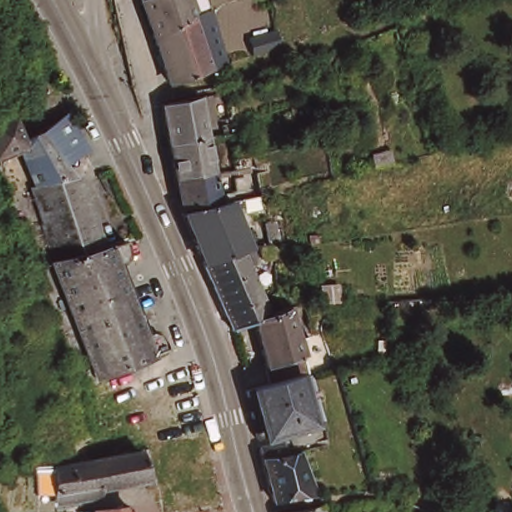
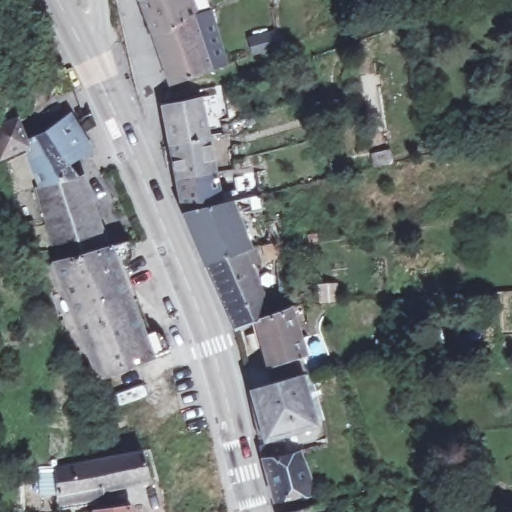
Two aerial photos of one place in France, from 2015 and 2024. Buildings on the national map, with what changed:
unchanged [(150,30),(141,7),(139,0),(182,0),(186,18),(150,30)]
unchanged [(211,66),(201,70),(169,80),(150,30),(186,18),(193,42),(203,38),(211,66)]
unchanged [(283,41),(249,53),(245,36),(279,25),(283,41)]
unchanged [(172,146),(166,105),(201,95),(209,137),(172,146)]
unchanged [(228,126),(219,128),(218,119),(226,117),(228,126)]
unchanged [(75,119),(95,155),(70,170),(78,182),(43,190),(29,151),(4,160),(0,133),(20,126),(29,149),(68,124),(75,119)]
unchanged [(216,172),(178,181),(172,146),(209,137),(216,172)]
unchanged [(223,205),(186,212),(180,195),(178,181),(216,172),(223,205)]
unchanged [(78,182),(98,214),(111,253),(60,263),(43,190),(78,182)]
unchanged [(254,249),(207,265),(186,212),(223,205),(236,202),(249,247),(257,249),(254,249)]
unchanged [(111,253),(114,252),(131,248),(133,264),(130,270),(120,276),(146,342),(159,342),(163,343),(167,347),(171,358),(94,383),(87,367),(83,355),(78,357),(76,353),(56,302),(54,295),(59,292),(49,262),(60,263),(111,253)]
unchanged [(262,265),(253,268),(269,316),(253,323),(233,331),(231,321),(220,297),(207,265),(254,249),(257,249),(262,265)]
unchanged [(316,306),(316,285),(344,283),(342,304),(316,306)]
unchanged [(291,307),(306,355),(303,356),(267,369),(253,323),(269,316),(291,307)]
unchanged [(303,379),(309,377),(313,376),(326,423),(316,426),(258,441),(246,395),(273,388),(303,379)]
unchanged [(299,452),(316,497),(274,502),(260,451),(284,445),(288,453),(299,452)]
unchanged [(39,466),(58,466),(68,465),(76,464),(144,452),(151,480),(101,489),(103,503),(61,507),(60,495),(42,497),(39,466)]
unchanged [(99,508),(131,504),(132,512),(99,512),(99,508)]
unchanged [(323,507),(324,512),(304,512),(323,507)]

